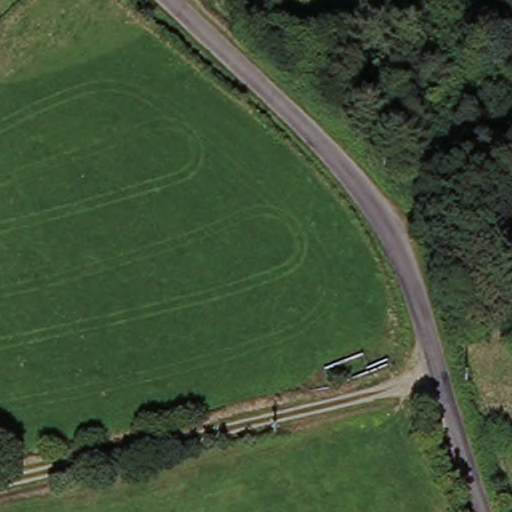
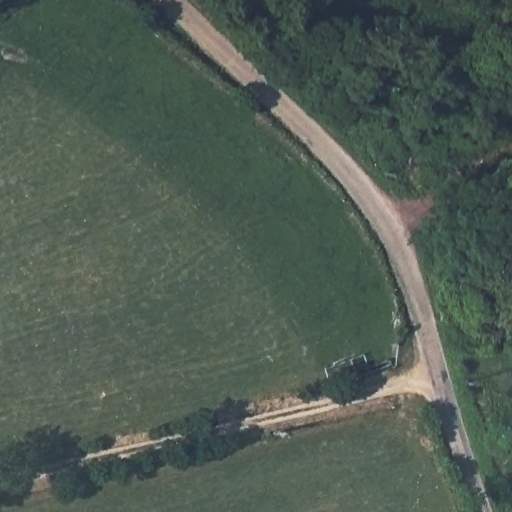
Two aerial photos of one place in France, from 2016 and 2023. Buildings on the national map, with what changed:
[]

